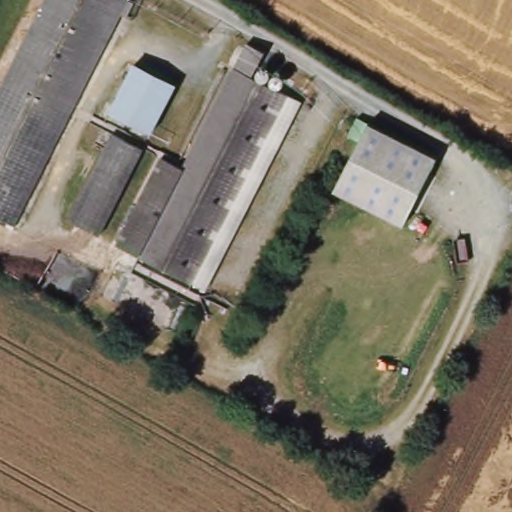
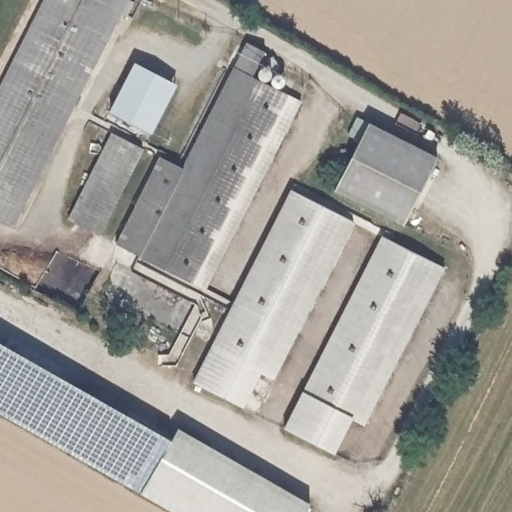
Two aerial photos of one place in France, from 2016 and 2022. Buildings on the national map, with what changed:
unchanged [(7,227),(0,224),(0,99),(54,0),(132,0),(7,227)]
unchanged [(119,244),(169,157),(188,166),(255,40),(272,51),(260,75),(295,95),(192,283),(119,244)]
unchanged [(178,88),(153,134),(114,112),(141,66),(178,88)]
unchanged [(403,226),(334,192),(369,124),(437,157),(403,226)]
unchanged [(150,147),(103,235),(72,217),(119,132),(150,147)]
new [(224,338),(214,332),(298,181),(359,215),(274,366),(263,360),(243,397),(204,375),(224,338)]
new [(387,230),(448,264),(363,416),(352,410),(332,447),(282,418),(387,230)]
new [(175,512),(141,492),(179,428),(309,503),(304,512),(175,512)]

